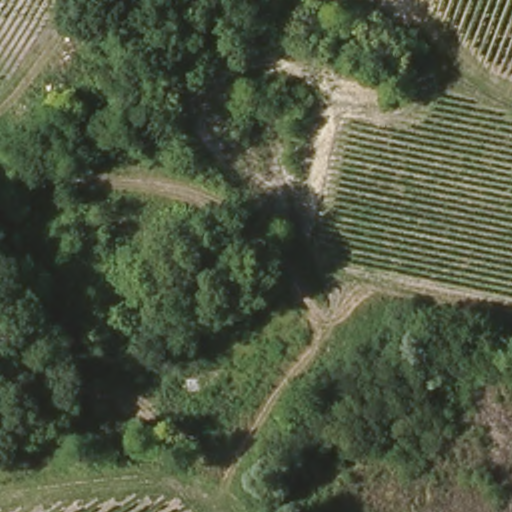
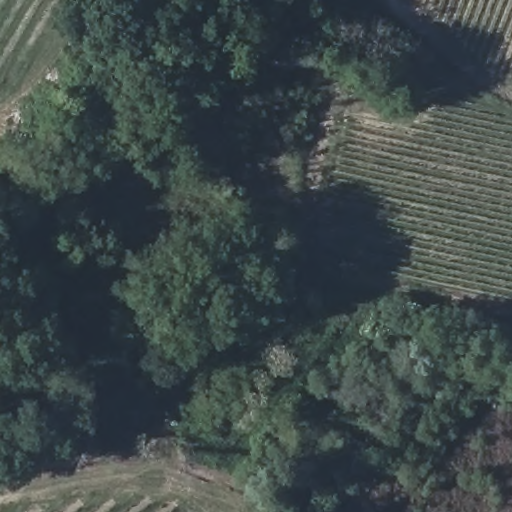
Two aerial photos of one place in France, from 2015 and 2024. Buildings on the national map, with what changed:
[]

